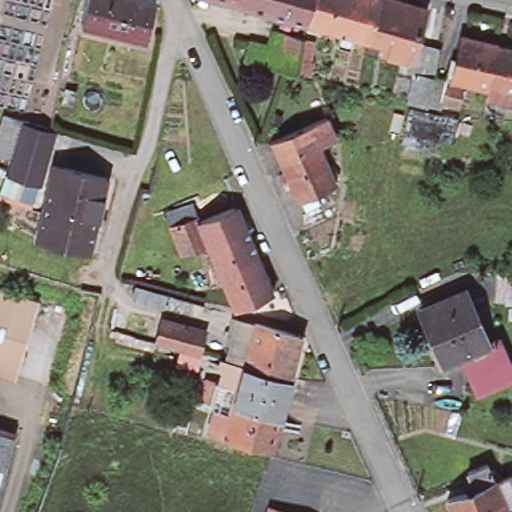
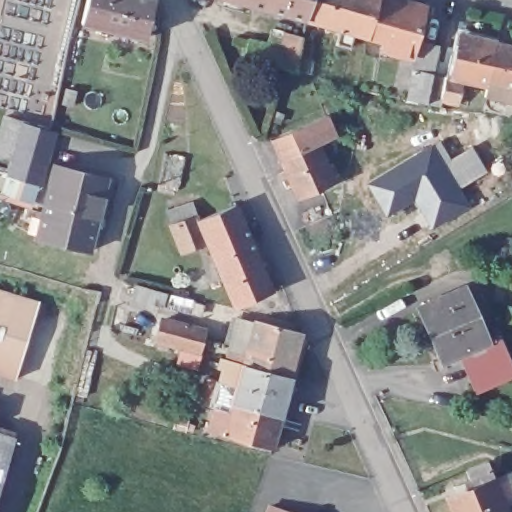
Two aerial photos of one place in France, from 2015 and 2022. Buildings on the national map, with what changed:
unchanged [(144,34),(79,21),(83,0),(151,0),(144,34)]
unchanged [(306,24),(305,27),(272,18),(211,0),(313,0),(306,24)]
unchanged [(337,48),(340,34),(306,24),(313,0),(365,0),(377,4),(367,42),(354,38),(350,52),(337,48)]
unchanged [(455,66),(460,44),(495,52),(485,95),(461,90),(457,113),(448,111),(442,145),(400,135),(405,107),(412,75),(414,64),(409,62),(380,54),(382,46),(367,42),(377,4),(422,17),(414,46),(438,52),(432,79),(431,84),(444,87),(449,64),(455,66)]
unchanged [(282,31),(313,40),(309,77),(294,72),(256,61),(260,43),(279,47),(282,31)]
unchanged [(506,111),(508,101),(485,95),(495,52),(512,56),(512,112),(506,111)]
unchanged [(275,139),(329,115),(338,135),(322,142),(320,139),(282,156),(275,139)]
unchanged [(7,177),(10,169),(0,166),(0,132),(5,117),(55,134),(40,187),(35,206),(2,196),(7,177)]
unchanged [(282,171),(289,169),(282,156),(320,139),(322,142),(340,179),(301,196),(292,175),(285,177),(282,171)]
new [(440,143),(451,160),(473,148),(489,174),(461,190),(472,207),(432,232),(416,202),(386,219),(367,185),(440,143)]
unchanged [(110,181),(105,199),(77,192),(73,205),(47,198),(55,167),(110,181)]
unchanged [(73,205),(77,192),(105,199),(92,251),(38,236),(47,198),(73,205)]
unchanged [(235,307),(233,307),(206,244),(180,254),(169,225),(195,218),(196,221),(234,206),(242,223),(271,292),(235,307)]
unchanged [(505,303),(507,278),(508,277),(512,277),(512,304),(505,303)]
unchanged [(17,384),(0,379),(0,292),(42,305),(17,384)]
unchanged [(446,361),(423,312),(466,293),(488,342),(462,353),(446,361)]
unchanged [(207,429),(211,416),(215,401),(195,396),(201,377),(217,381),(225,355),(227,347),(240,351),(240,353),(245,355),(254,322),(300,335),(290,371),(289,376),(292,377),(286,400),(273,447),(223,435),(214,432),(214,431),(207,429)]
unchanged [(177,365),(180,351),(155,344),(156,342),(160,325),(205,336),(200,353),(199,356),(195,369),(177,365)]
unchanged [(497,338),(512,371),(512,375),(479,390),(462,353),(488,342),(497,338)]
unchanged [(0,510),(0,433),(22,440),(0,510)]
unchanged [(475,491),(469,475),(488,467),(495,483),(507,512),(453,512),(449,502),(475,491)]
unchanged [(288,512),(263,512),(265,505),(288,512)]

